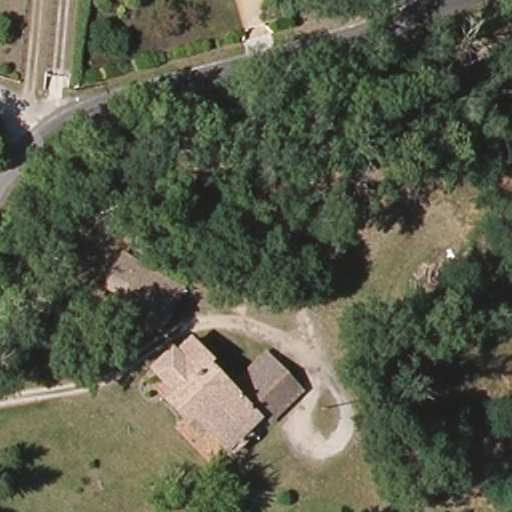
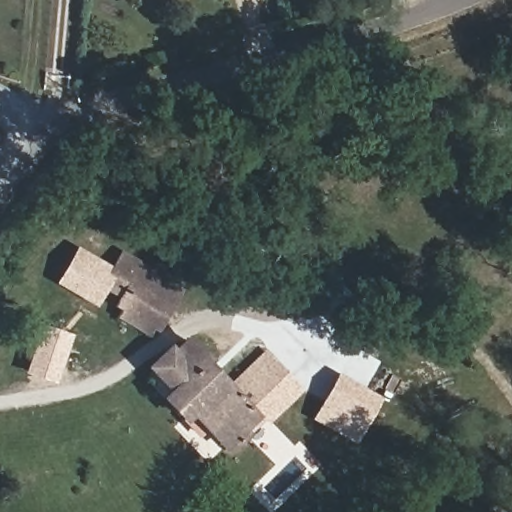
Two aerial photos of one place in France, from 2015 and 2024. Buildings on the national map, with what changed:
new [(101,282),(109,289),(97,308),(55,283),(76,246),(112,268),(101,282)]
unchanged [(122,299),(101,282),(121,255),(141,270),(177,295),(150,333),(144,329),(138,337),(111,316),(116,308),(122,299)]
new [(54,384),(25,373),(42,325),(71,334),(54,384)]
unchanged [(188,422),(184,425),(168,406),(176,396),(154,376),(156,373),(153,368),(168,353),(173,357),(189,340),(212,360),(207,366),(232,389),(250,368),(292,402),(279,416),(270,408),(262,418),(249,433),(253,437),(236,453),(213,432),(205,439),(188,422)]
unchanged [(267,349),(306,385),(292,402),(250,368),(267,349)]
new [(383,398),(356,445),(311,420),(338,373),(383,398)]

